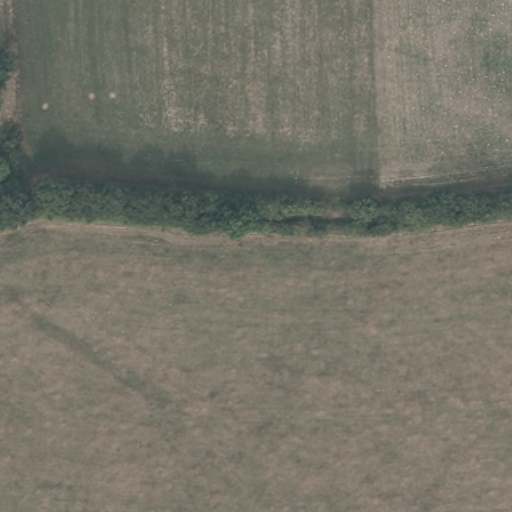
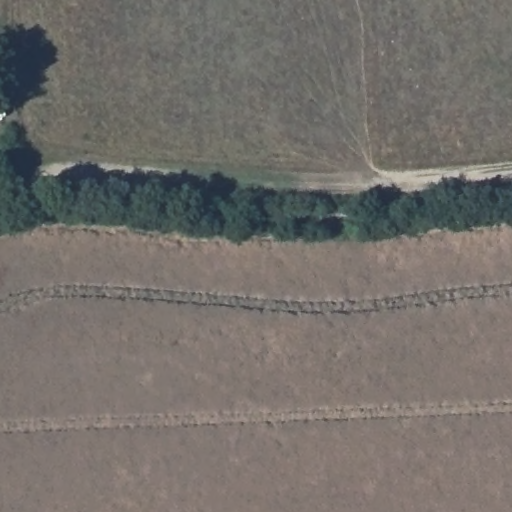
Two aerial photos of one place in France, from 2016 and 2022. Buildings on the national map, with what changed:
[]

